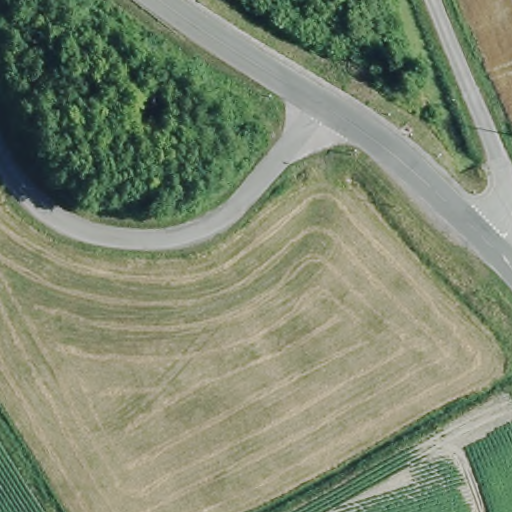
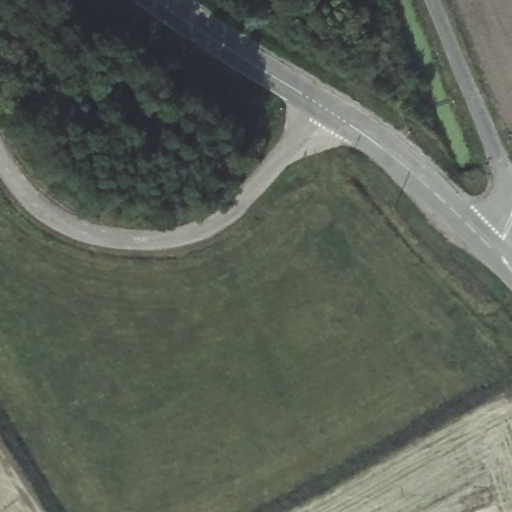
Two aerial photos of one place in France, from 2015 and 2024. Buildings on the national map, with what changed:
[]

